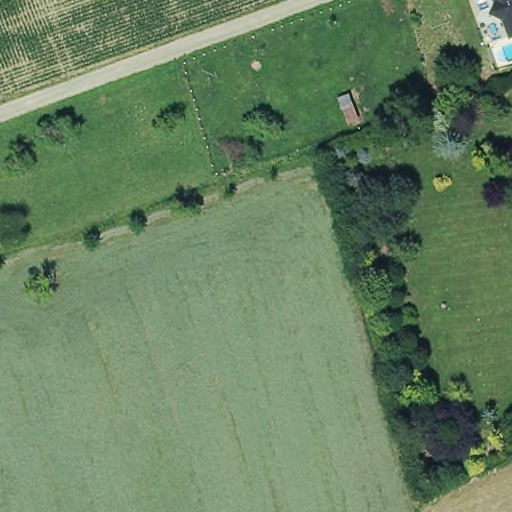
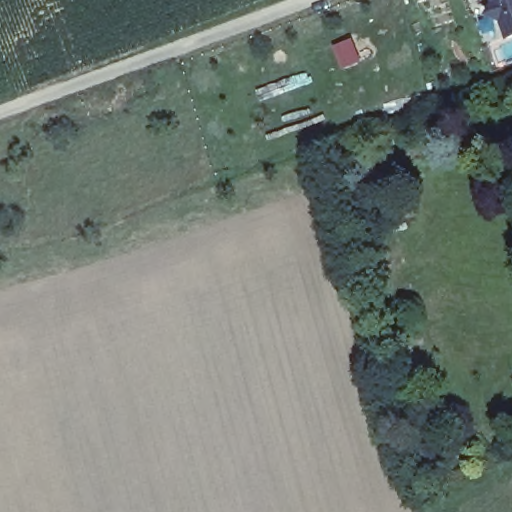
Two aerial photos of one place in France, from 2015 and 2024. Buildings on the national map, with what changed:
unchanged [(508,22),(496,19),(502,8),(499,0),(512,0),(512,34),(508,22)]

